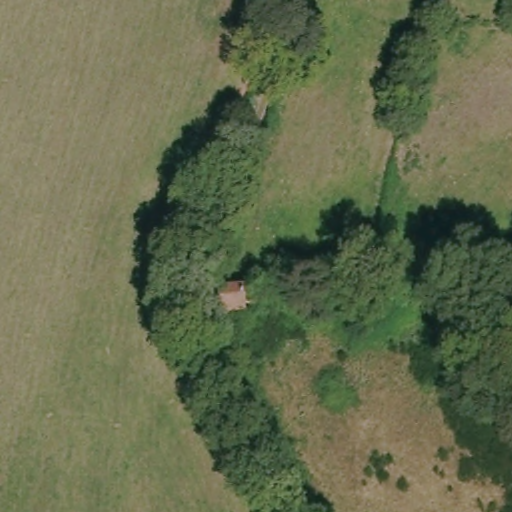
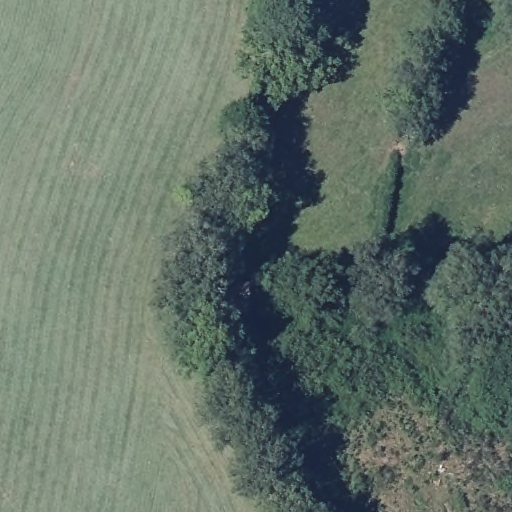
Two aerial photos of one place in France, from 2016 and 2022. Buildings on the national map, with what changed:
unchanged [(262,319),(249,318),(248,326),(221,327),(222,301),(263,299),(262,319)]

